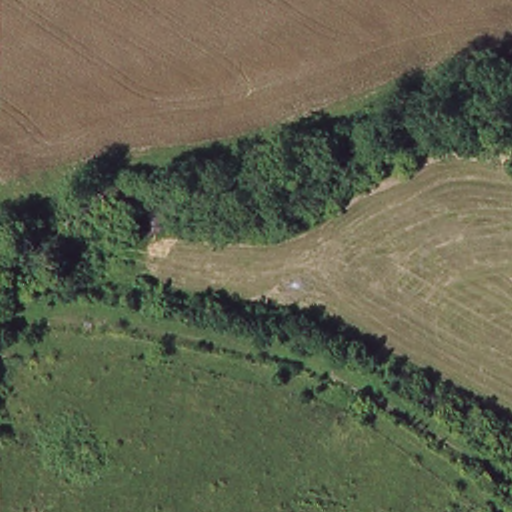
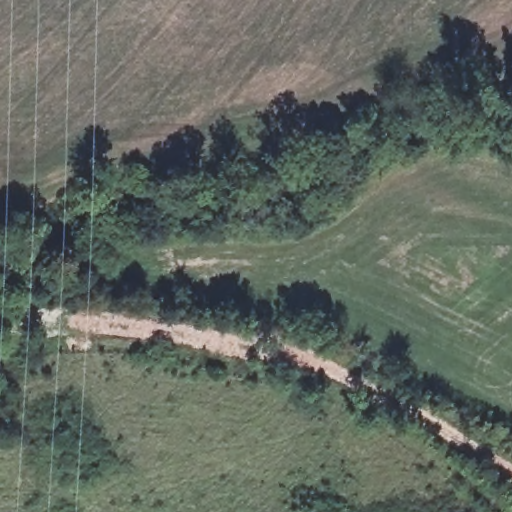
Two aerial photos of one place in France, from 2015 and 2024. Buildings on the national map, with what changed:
[]

